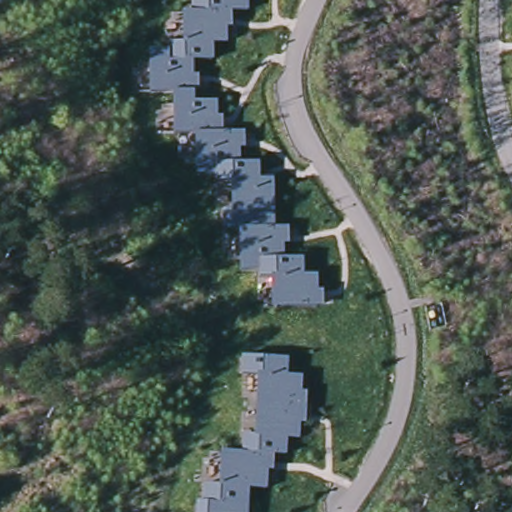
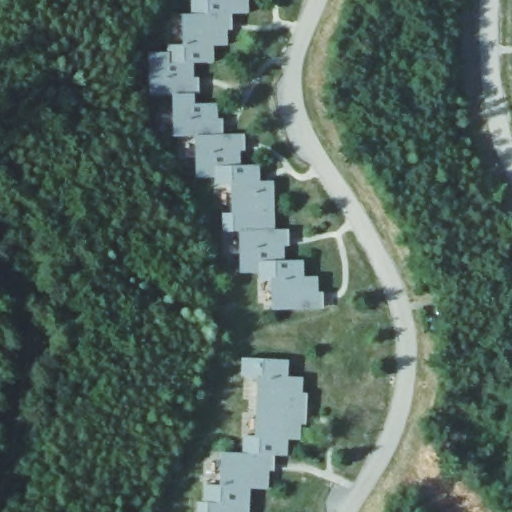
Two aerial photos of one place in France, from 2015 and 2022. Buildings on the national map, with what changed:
unchanged [(247,13),(225,14),(225,13),(193,14),(193,0),(247,0),(247,13)]
unchanged [(169,45),(184,45),(183,14),(193,14),(225,13),(225,14),(226,22),(233,22),(233,28),(237,28),(238,40),(230,40),(230,28),(226,28),(227,45),(212,45),(213,62),(192,62),(170,63),(170,52),(169,52),(169,46),(169,45)]
unchanged [(200,85),(210,84),(210,91),(197,92),(197,85),(193,85),(193,94),(174,94),(151,95),(150,64),(150,52),(169,52),(170,52),(170,63),(192,62),(193,79),(200,79),(200,85)]
unchanged [(225,126),(233,125),(233,132),(222,133),(222,126),(217,126),(217,135),(196,135),(175,136),(174,94),(193,94),(193,104),(216,103),(217,120),(224,120),(225,126)]
unchanged [(197,166),(196,135),(217,135),(238,134),(238,143),(243,143),(243,136),(255,135),(255,143),(247,143),(247,149),(239,149),(240,165),(216,166),(217,176),(216,176),(197,177),(197,166)]
unchanged [(224,214),(224,213),(233,213),(232,184),(217,184),(216,176),(217,176),(216,166),(240,165),(258,165),(258,181),(265,181),(265,185),(272,185),(272,193),(273,230),(240,230),(224,231),(224,214)]
unchanged [(240,230),(273,230),(282,229),(282,238),(287,238),(287,231),(299,231),(300,238),(290,238),(290,244),(283,244),(283,260),(283,261),(260,261),(260,272),(241,272),(240,230)]
unchanged [(325,299),(333,298),(334,305),(322,306),(322,299),(317,299),(317,308),(277,309),(275,278),(260,279),(260,272),(260,261),(283,261),(283,260),(302,260),(302,277),(317,276),(317,293),(325,293),(325,299)]
unchanged [(305,410),(312,410),(312,421),(307,421),(307,427),(300,427),(299,442),(287,441),(286,458),(268,457),(242,456),(243,441),(261,442),(264,382),(245,381),(245,363),(287,365),(287,382),(302,382),(300,421),(305,421),(305,410)]
unchanged [(220,488),(221,455),(242,456),(268,457),(268,468),(275,469),(275,475),(280,475),(279,487),(272,486),(272,475),(268,475),(267,491),(249,490),(248,507),(203,505),(204,487),(220,488)]
unchanged [(203,505),(248,507),(248,512),(197,512),(197,505),(203,505)]

